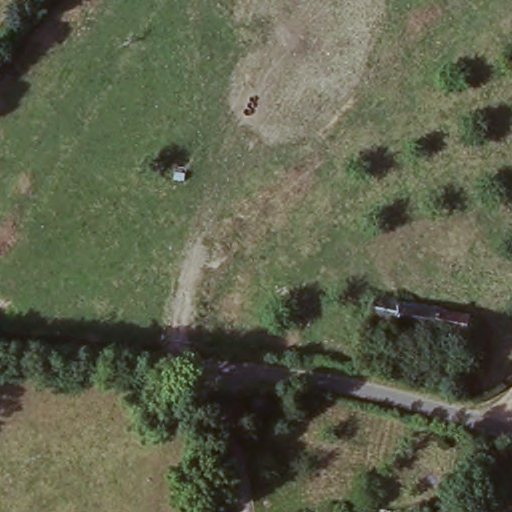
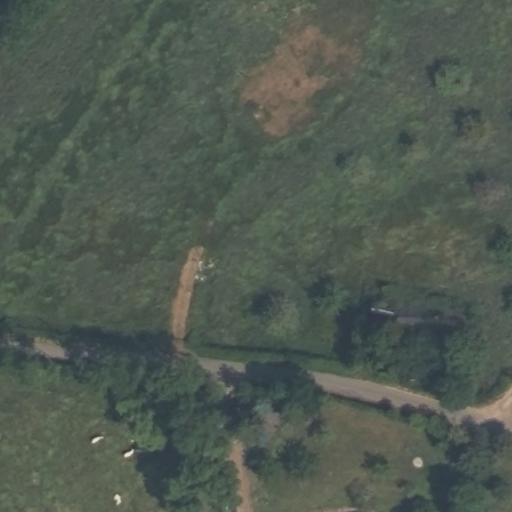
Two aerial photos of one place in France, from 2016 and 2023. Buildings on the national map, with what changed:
unchanged [(375,307),(435,311),(433,321),(472,326),(469,342),(432,340),(432,347),(395,343),(396,334),(374,332),(375,307)]

